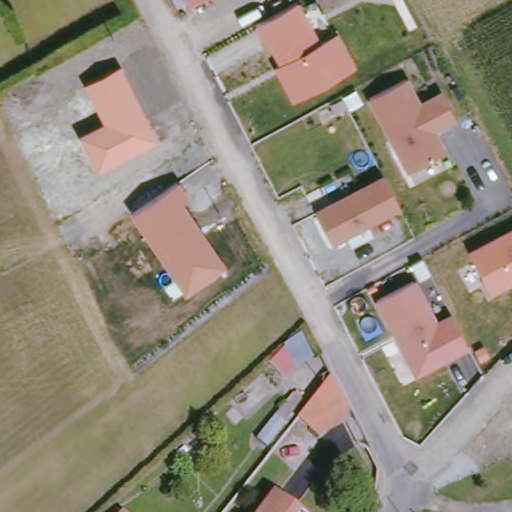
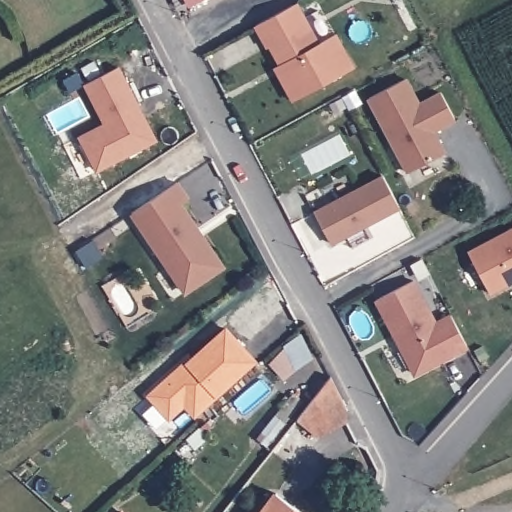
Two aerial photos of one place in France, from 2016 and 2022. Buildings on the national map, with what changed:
unchanged [(292,101),(274,67),(277,65),(258,26),(299,5),(320,42),(337,34),(355,67),(292,101)]
unchanged [(159,140),(98,171),(78,135),(104,122),(85,85),(120,65),(159,140)]
unchanged [(410,175),(370,99),(410,79),(422,102),(443,91),(459,121),(437,131),(448,152),(410,175)]
unchanged [(334,246),(315,211),(386,175),(402,208),(334,246)]
unchanged [(192,197),(184,202),(227,265),(185,294),(129,214),(179,180),(192,197)]
unchanged [(470,250),(512,229),(512,287),(494,296),(470,250)]
unchanged [(419,378),(379,300),(419,280),(439,321),(453,315),(470,350),(419,378)]
new [(197,418),(184,405),(170,418),(148,396),(184,362),(185,363),(224,328),(255,361),(197,418)]
unchanged [(306,331),(317,362),(294,375),(280,346),(306,331)]
unchanged [(328,382),(349,413),(349,423),(328,435),(312,403),(328,382)]
unchanged [(273,492),(299,512),(259,512),(273,492)]

